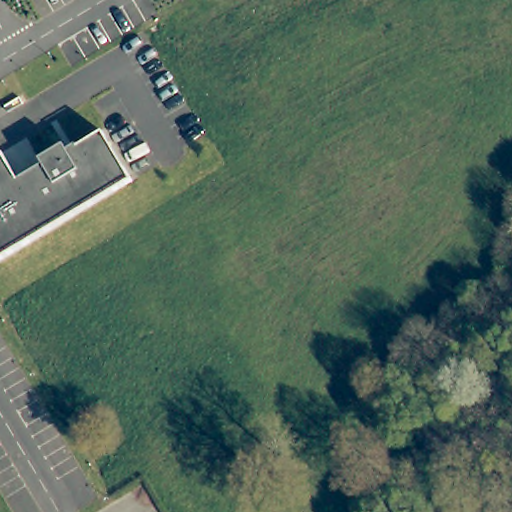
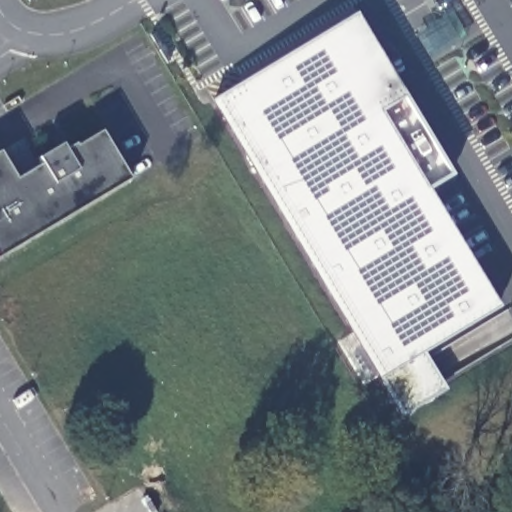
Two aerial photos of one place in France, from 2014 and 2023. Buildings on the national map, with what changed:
new [(356,13),(453,175),(429,190),(501,308),(423,353),(447,390),(402,415),(381,379),(212,101),(356,13)]
unchanged [(4,151),(21,178),(45,164),(42,158),(67,144),(71,152),(105,131),(134,180),(0,260),(0,153),(4,151)]

